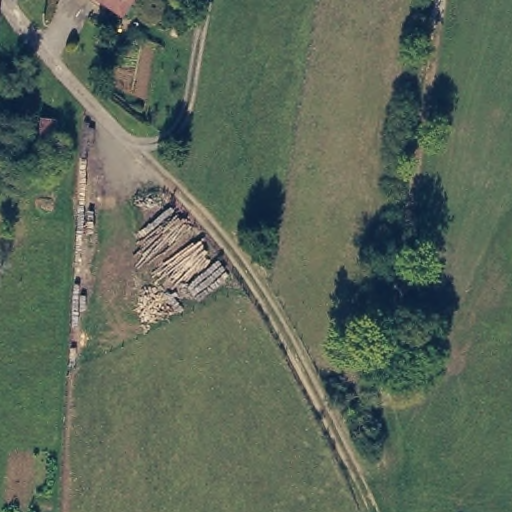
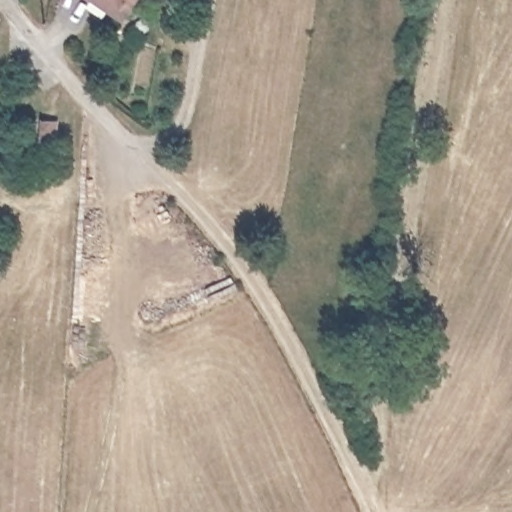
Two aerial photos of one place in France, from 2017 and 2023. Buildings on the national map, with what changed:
unchanged [(103,0),(132,0),(122,14),(103,0)]
unchanged [(41,145),(43,117),(57,119),(55,145),(41,145)]

